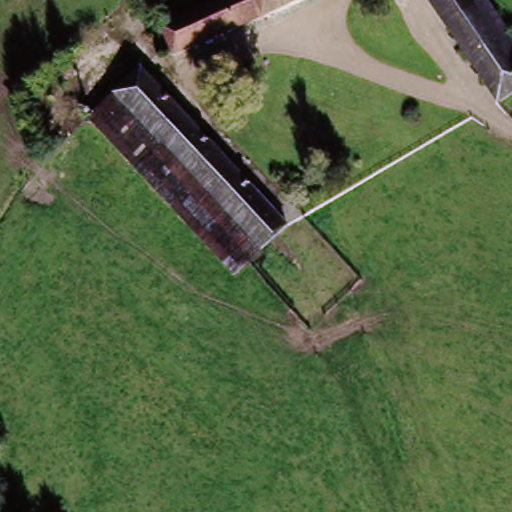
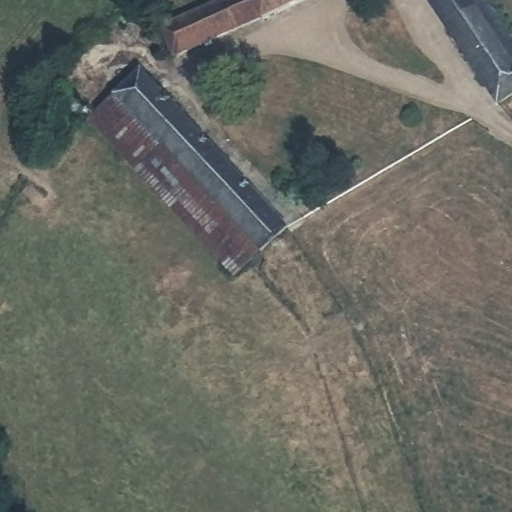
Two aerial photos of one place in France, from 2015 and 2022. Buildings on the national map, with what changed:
unchanged [(259,35),(256,27),(172,60),(155,24),(215,0),(309,0),(314,14),(259,35)]
unchanged [(420,47),(386,0),(418,0),(441,33),(420,47)]
unchanged [(512,56),(512,96),(492,109),(441,33),(418,0),(461,0),(503,62),(512,56)]
unchanged [(480,0),(512,47),(512,56),(503,62),(461,0),(480,0)]
unchanged [(118,101),(146,77),(282,229),(255,252),(257,250),(118,101)]
unchanged [(118,101),(257,250),(235,274),(82,116),(118,101)]

